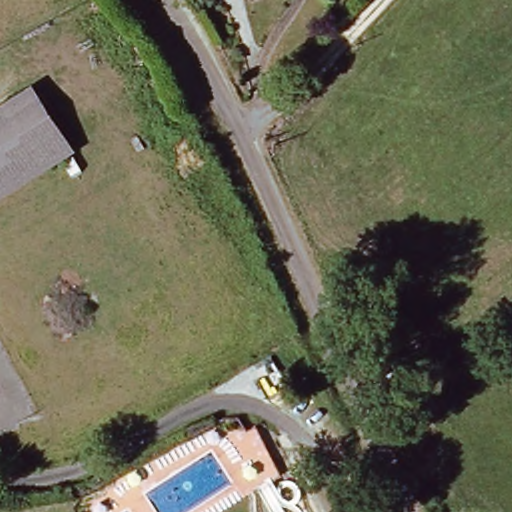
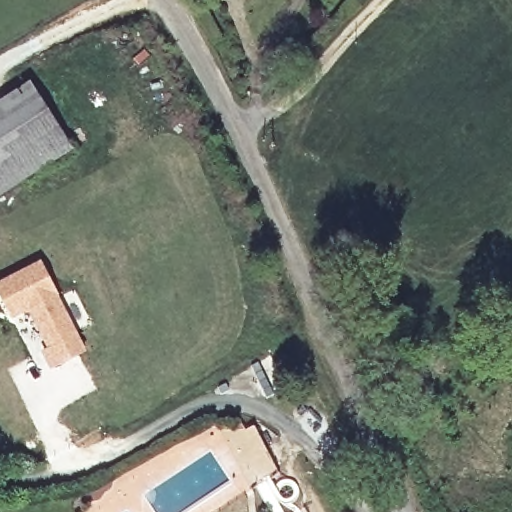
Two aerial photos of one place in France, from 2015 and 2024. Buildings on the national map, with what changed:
unchanged [(72,147),(0,190),(0,118),(42,94),(72,147)]
new [(87,351),(50,369),(40,350),(46,347),(27,310),(12,318),(0,296),(0,280),(42,259),(87,351)]

